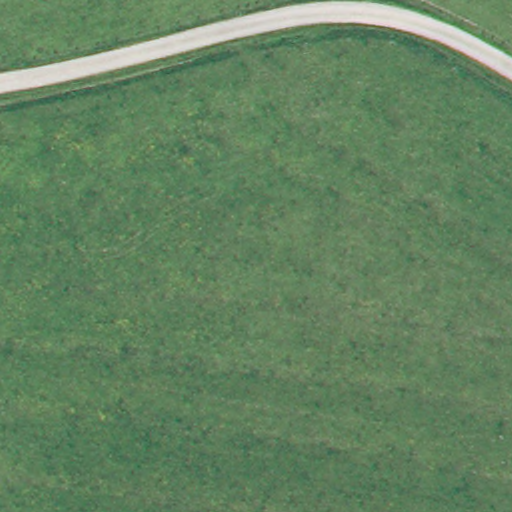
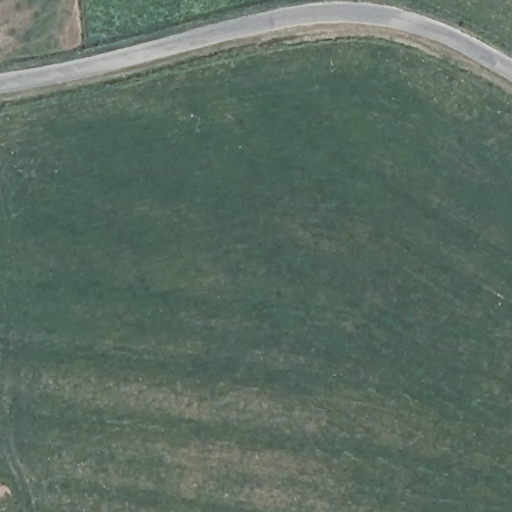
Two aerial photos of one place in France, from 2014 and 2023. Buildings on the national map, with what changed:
[]

